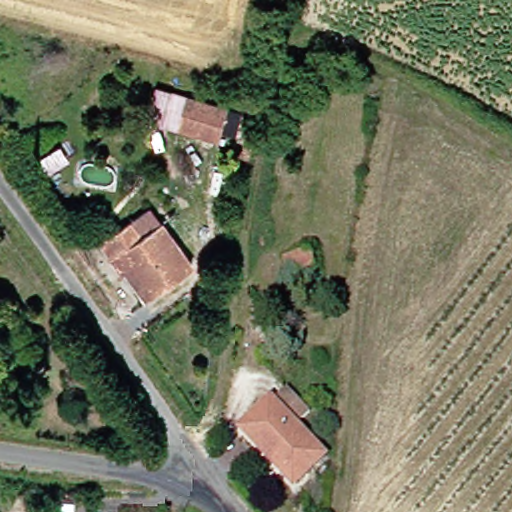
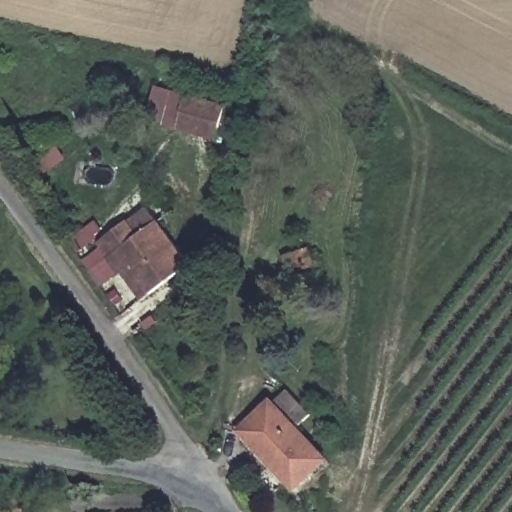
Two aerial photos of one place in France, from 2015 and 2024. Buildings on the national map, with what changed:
unchanged [(192,98),(231,106),(226,140),(184,130),(192,98)]
unchanged [(110,241),(135,222),(145,238),(164,224),(197,267),(157,297),(135,266),(131,270),(110,241)]
unchanged [(297,490),(253,430),(301,395),(322,422),(307,434),(330,465),(297,490)]

